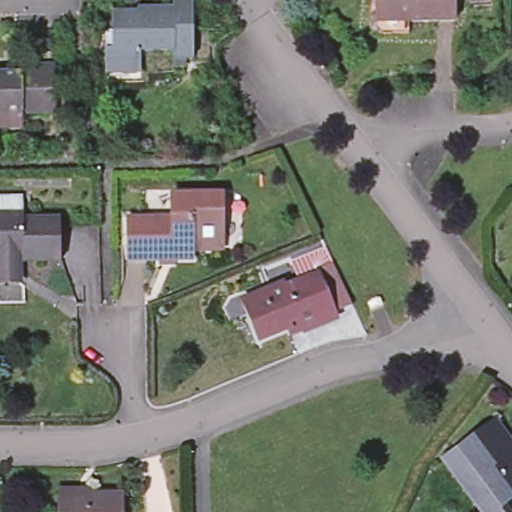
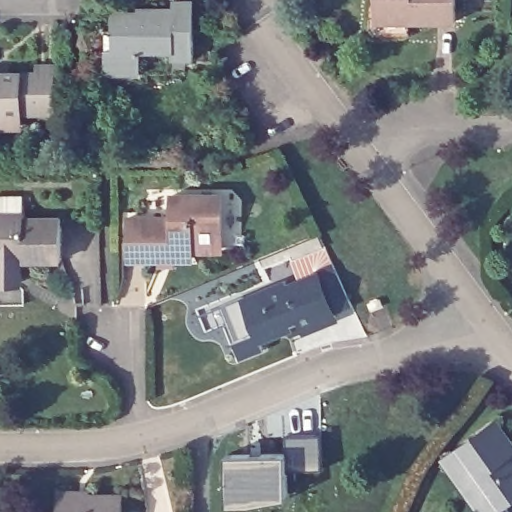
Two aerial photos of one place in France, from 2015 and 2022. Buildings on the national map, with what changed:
unchanged [(103,43),(113,42),(113,28),(108,28),(107,6),(127,6),(128,15),(135,15),(134,6),(168,4),(168,0),(188,0),(190,54),(170,55),(170,46),(137,47),(138,69),(104,70),(103,43)]
unchanged [(374,27),(374,10),(374,0),(453,0),(453,16),(406,16),(406,27),(374,27)]
unchanged [(0,125),(0,69),(34,69),(34,62),(51,62),(51,111),(17,111),(18,125),(0,125)]
unchanged [(18,257),(18,252),(5,252),(12,262),(12,280),(0,280),(0,193),(16,192),(16,210),(16,214),(54,213),(95,212),(95,220),(55,221),(56,256),(18,257)]
unchanged [(160,267),(160,261),(130,261),(128,219),(172,217),(172,194),(221,193),(223,246),(194,247),(194,256),(179,257),(179,266),(160,267)]
unchanged [(297,326),(293,317),(254,333),(238,295),(279,277),(281,282),(310,270),(308,264),(326,256),(336,276),(346,298),(327,307),(330,312),(297,326)]
unchanged [(356,276),(365,272),(369,281),(360,285),(356,276)]
unchanged [(486,512),(457,477),(466,470),(449,447),(490,415),(512,442),(503,450),(509,457),(512,455),(512,489),(502,497),(508,506),(499,512),(486,512)]
new [(252,456),(252,459),(263,458),(263,456),(288,455),(287,437),(323,436),(324,471),(288,472),(289,499),(287,499),(287,494),(252,496),(252,502),(231,502),(231,507),(228,507),(227,457),(252,456)]
unchanged [(57,483),(86,483),(86,487),(120,487),(120,512),(57,512),(57,491),(57,483)]

